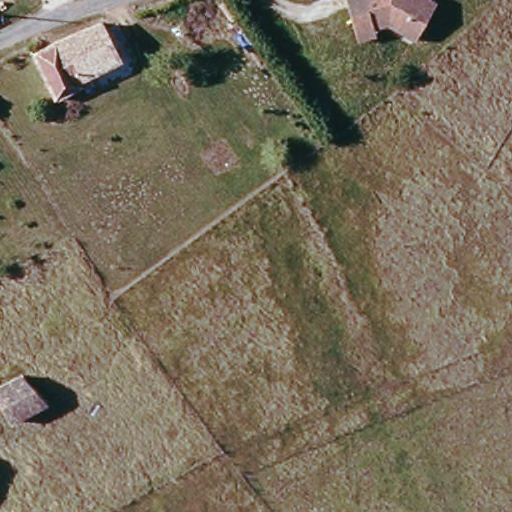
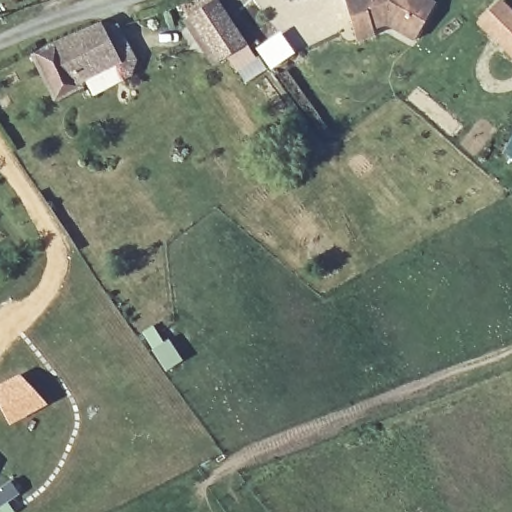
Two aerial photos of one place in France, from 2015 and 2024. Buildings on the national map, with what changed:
new [(219,0),(248,43),(215,66),(182,21),(214,0),(219,0)]
unchanged [(430,0),(435,3),(412,41),(384,24),(371,28),(373,36),(354,40),(350,23),(344,0),(430,0)]
new [(499,0),(502,0),(512,10),(512,57),(476,22),(499,0)]
unchanged [(57,97),(35,52),(83,27),(102,21),(121,58),(81,78),(84,84),(57,97)]
unchanged [(22,378),(47,406),(12,424),(0,402),(0,389),(22,378)]

